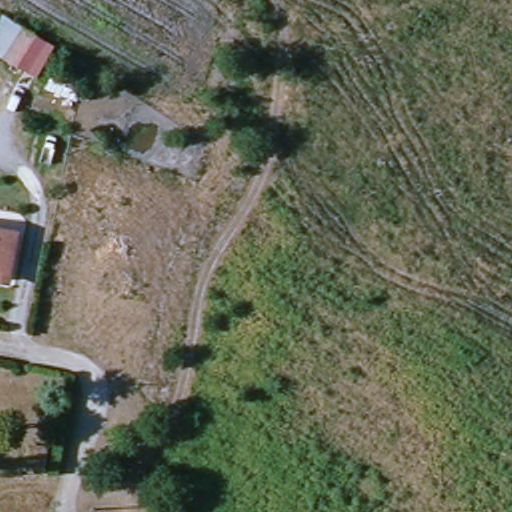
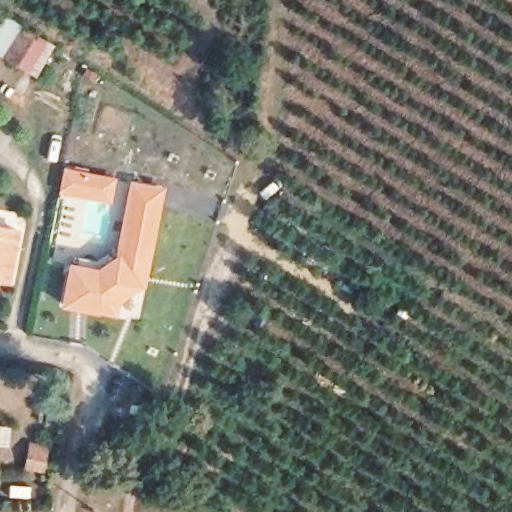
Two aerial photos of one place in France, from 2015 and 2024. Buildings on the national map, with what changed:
unchanged [(0,55),(0,29),(4,16),(37,36),(19,65),(0,55)]
new [(64,165),(116,176),(110,203),(58,192),(64,165)]
new [(130,180),(165,186),(156,232),(121,228),(130,180)]
new [(156,232),(146,287),(142,285),(120,302),(119,315),(100,311),(100,313),(60,307),(70,261),(99,266),(118,252),(121,228),(156,232)]
unchanged [(9,280),(0,279),(0,229),(17,232),(9,280)]
unchanged [(44,471),(27,468),(31,445),(48,447),(44,471)]

